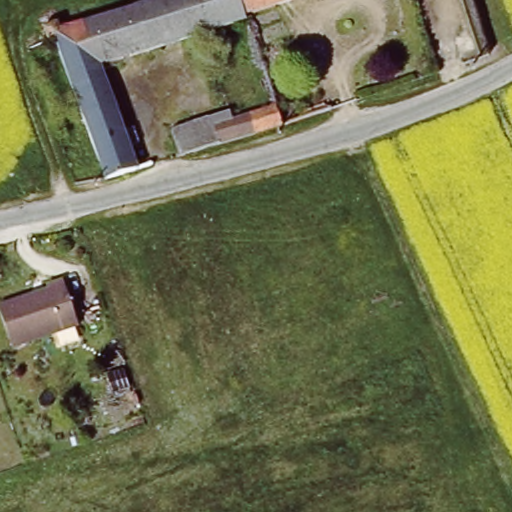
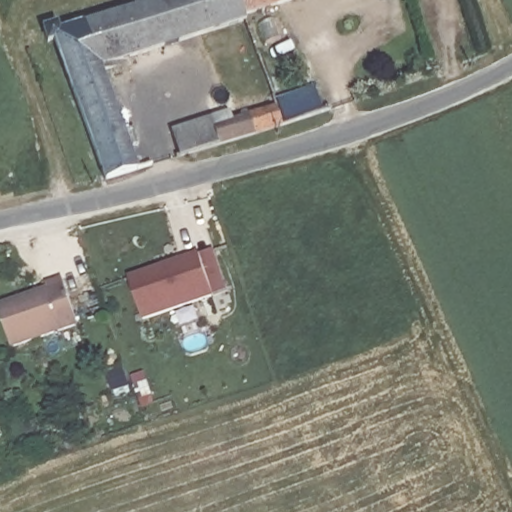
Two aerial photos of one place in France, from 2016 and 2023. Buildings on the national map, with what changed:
unchanged [(35,14),(70,1),(78,24),(150,0),(229,0),(235,15),(237,21),(101,64),(101,65),(100,65),(61,79),(46,44),(46,43),(32,47),(26,30),(40,25),(35,14)]
unchanged [(235,15),(229,0),(288,0),(235,15)]
unchanged [(101,65),(127,129),(136,125),(141,139),(134,142),(143,165),(103,175),(61,79),(100,65),(101,65)]
unchanged [(276,128),(218,145),(213,126),(270,111),(276,128)]
unchanged [(218,145),(178,155),(168,129),(208,116),(213,126),(218,145)]
new [(198,254),(213,296),(143,320),(130,276),(198,254)]
unchanged [(10,343),(0,309),(0,302),(46,286),(44,281),(61,276),(76,322),(10,343)]

